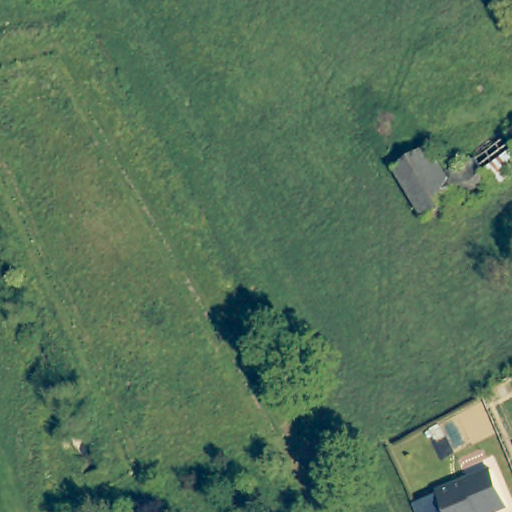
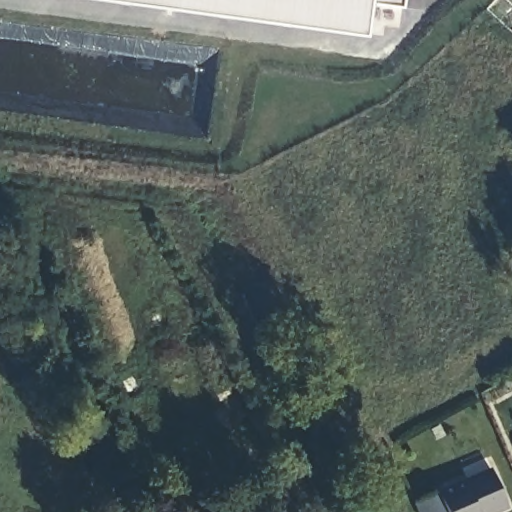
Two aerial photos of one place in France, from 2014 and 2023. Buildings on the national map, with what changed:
new [(95,0),(369,0),(369,2),(364,34),(95,0)]
new [(403,7),(369,2),(369,0),(404,0),(403,7)]
unchanged [(512,132),(512,140),(508,134),(512,132)]
unchanged [(446,512),(437,491),(491,468),(506,506),(492,512),(446,512)]

